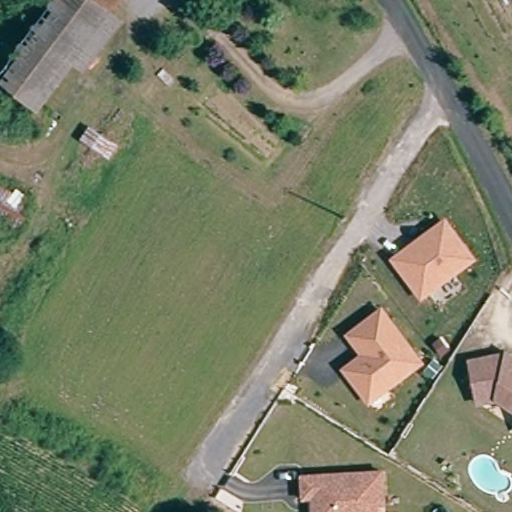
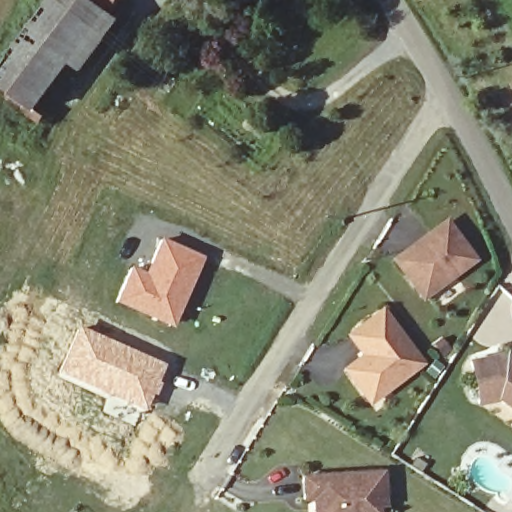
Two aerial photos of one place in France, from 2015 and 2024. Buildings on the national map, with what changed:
unchanged [(115,0),(105,15),(59,86),(16,58),(55,0),(115,0)]
demolished [(0,181),(31,204),(19,235),(0,221),(0,181)]
unchanged [(421,300),(391,259),(446,219),(476,260),(421,300)]
new [(129,266),(144,272),(160,238),(202,257),(169,329),(111,303),(129,266)]
unchanged [(370,405),(342,368),(360,355),(347,336),(382,308),(423,364),(370,405)]
new [(75,325),(164,364),(152,393),(139,414),(53,376),(75,325)]
unchanged [(496,404),(480,407),(470,359),(510,352),(512,354),(512,412),(496,404)]
unchanged [(388,506),(380,507),(380,512),(312,512),(311,501),(303,501),(302,476),(385,470),(388,506)]

